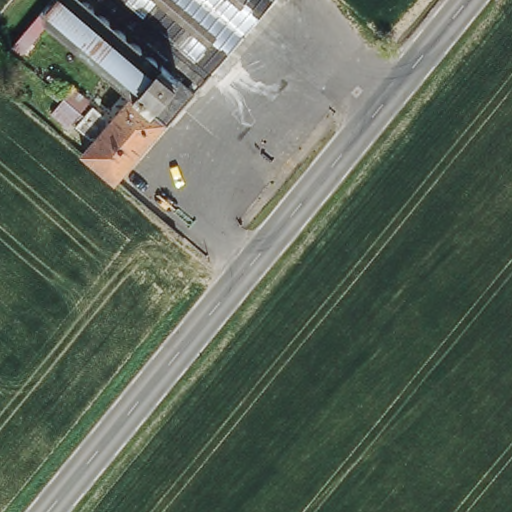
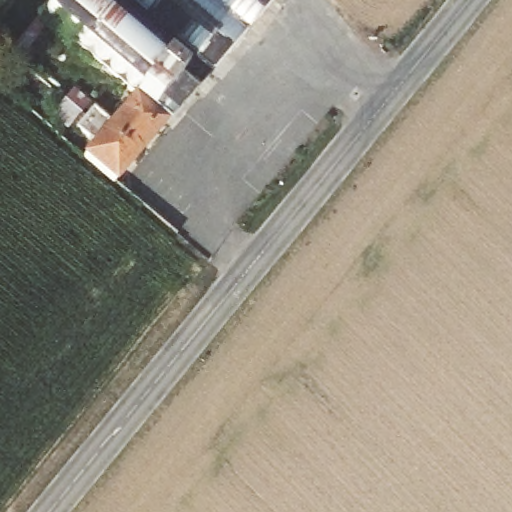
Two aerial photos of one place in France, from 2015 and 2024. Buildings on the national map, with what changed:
unchanged [(94,80),(102,70),(47,22),(19,54),(7,45),(35,12),(46,0),(86,0),(92,5),(114,23),(142,46),(164,65),(168,60),(180,47),(152,23),(139,11),(125,0),(269,0),(264,5),(165,118),(162,116),(130,93),(117,83),(110,93),(94,80)]
unchanged [(0,70),(0,57),(6,63),(0,70)]
unchanged [(72,81),(87,93),(66,120),(50,107),(72,81)]
unchanged [(90,103),(105,114),(102,118),(105,121),(130,93),(162,116),(111,177),(80,152),(92,137),(88,135),(87,137),(71,124),(90,103)]

